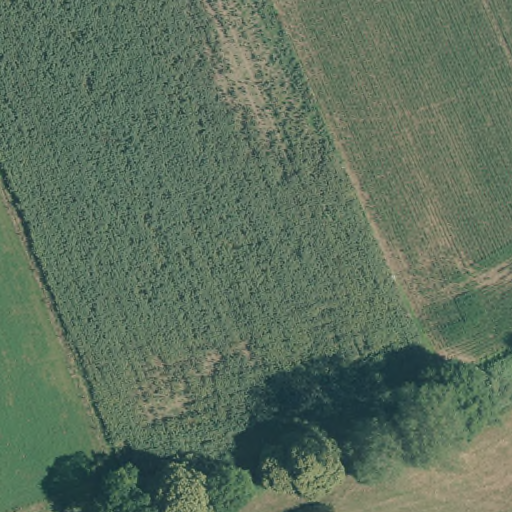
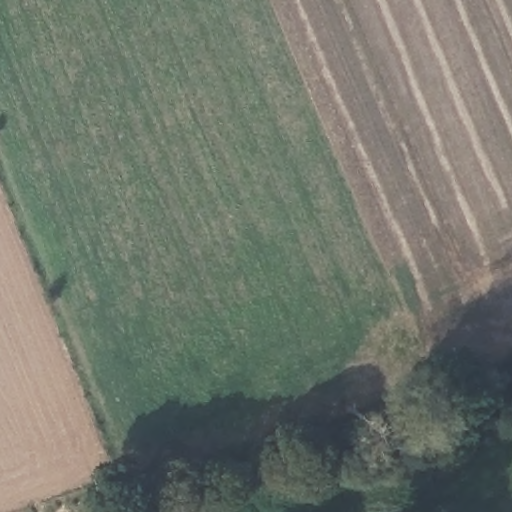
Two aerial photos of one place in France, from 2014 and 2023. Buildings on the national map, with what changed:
[]

